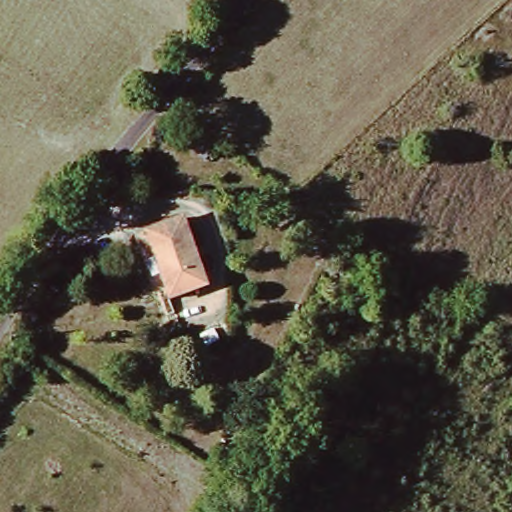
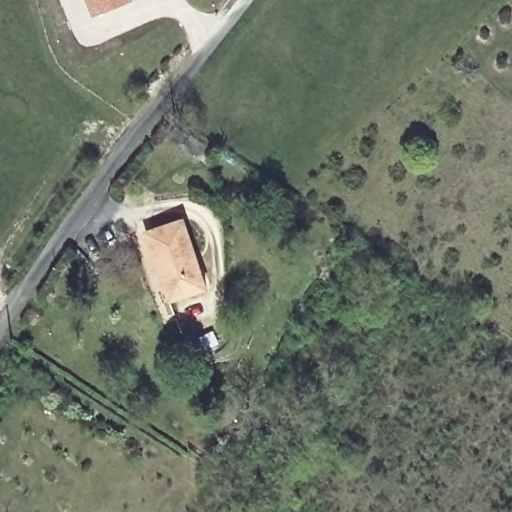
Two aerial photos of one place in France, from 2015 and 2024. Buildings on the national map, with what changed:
new [(132,1),(94,17),(87,0),(131,0),(132,1)]
unchanged [(215,273),(184,298),(155,264),(139,244),(147,237),(169,219),(215,273)]

